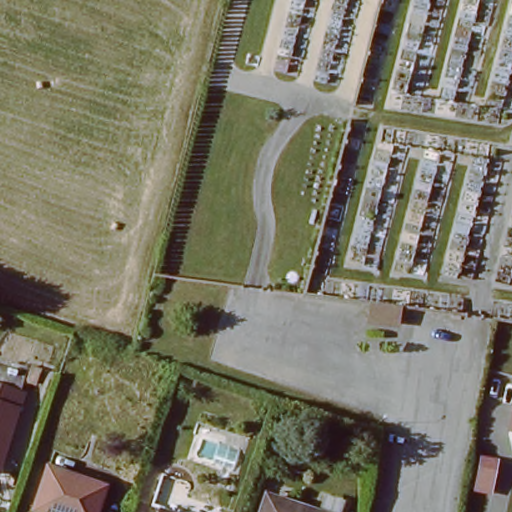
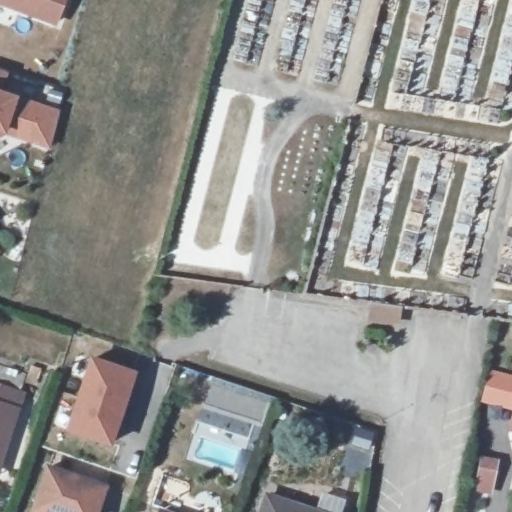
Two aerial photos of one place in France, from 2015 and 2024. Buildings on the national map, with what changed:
unchanged [(0,0),(64,0),(56,21),(0,0)]
new [(0,96),(32,106),(21,139),(8,135),(0,139),(0,72),(8,74),(0,96)]
new [(92,356),(138,373),(113,448),(65,431),(92,356)]
unchanged [(5,442),(0,457),(0,387),(21,394),(5,442)]
unchanged [(499,464),(493,495),(477,493),(483,460),(499,464)]
unchanged [(105,487),(98,512),(33,512),(29,511),(44,467),(105,487)]
unchanged [(316,512),(256,512),(262,495),(316,512)]

